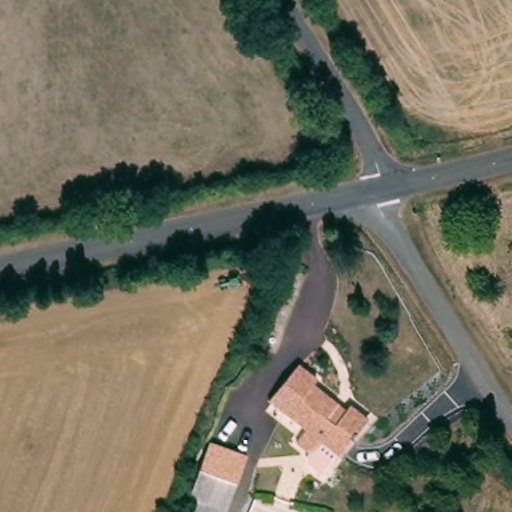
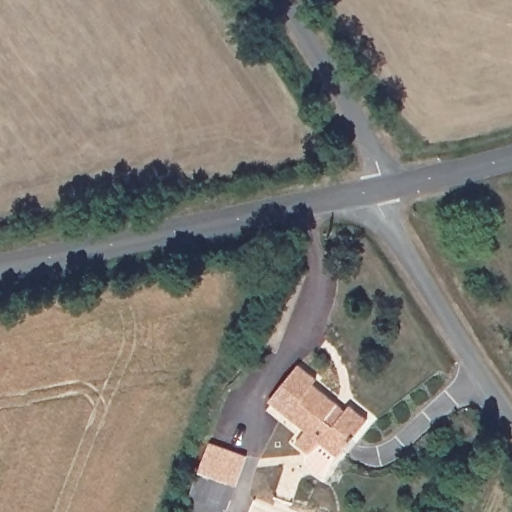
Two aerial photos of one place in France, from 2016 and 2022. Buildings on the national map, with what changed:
unchanged [(298,361),(316,376),(312,381),(344,407),(348,402),(366,417),(337,453),(328,465),(324,470),(318,470),(305,460),(305,454),(309,450),(295,438),(305,426),(268,396),(298,361)]
unchanged [(240,483),(230,506),(228,511),(228,512),(195,512),(202,495),(195,491),(204,469),(215,441),(251,455),(240,483)]

